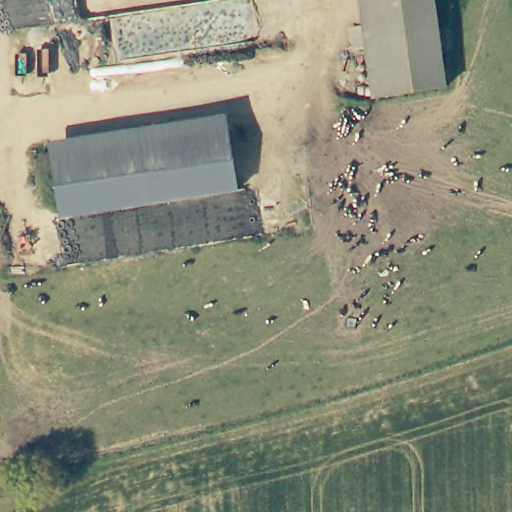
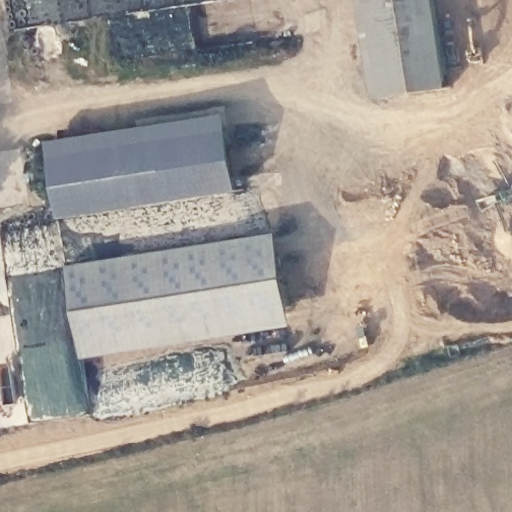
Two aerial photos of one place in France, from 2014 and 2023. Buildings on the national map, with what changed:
unchanged [(446,87),(372,97),(359,0),(433,0),(446,87)]
unchanged [(48,145),(225,110),(239,184),(62,218),(48,145)]
new [(292,326),(83,358),(68,265),(278,232),(292,326)]

